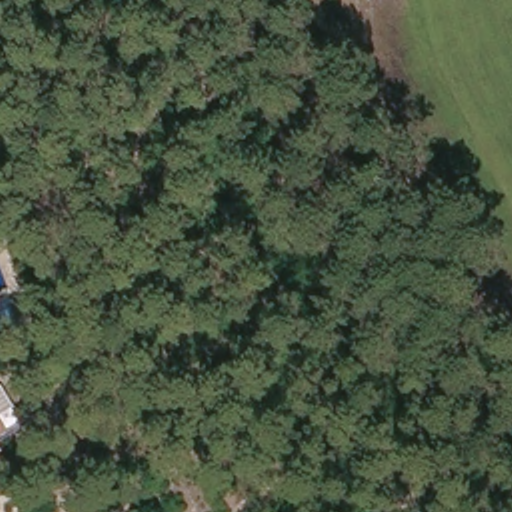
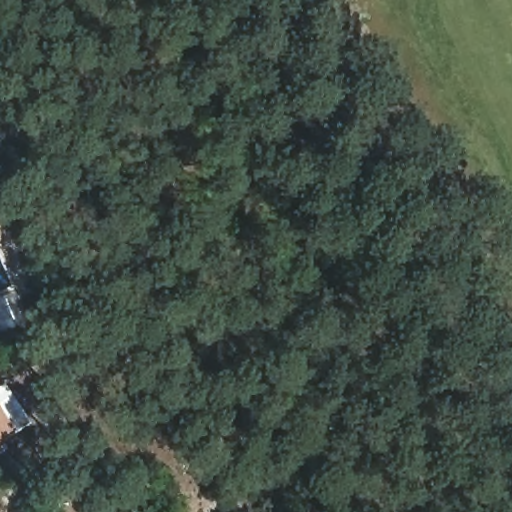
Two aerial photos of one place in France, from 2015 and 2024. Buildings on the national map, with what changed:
unchanged [(0,444),(0,408),(12,424),(0,434),(6,439),(0,444)]

